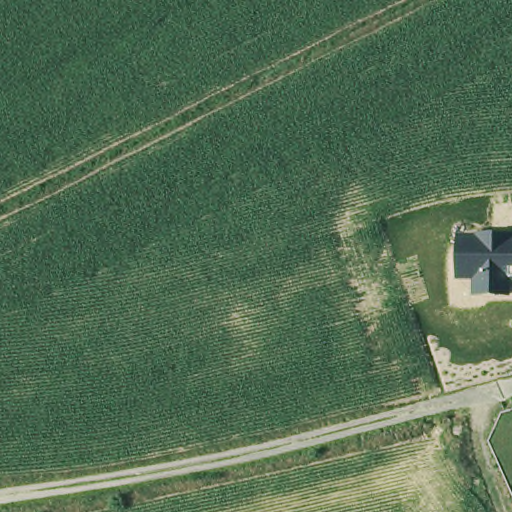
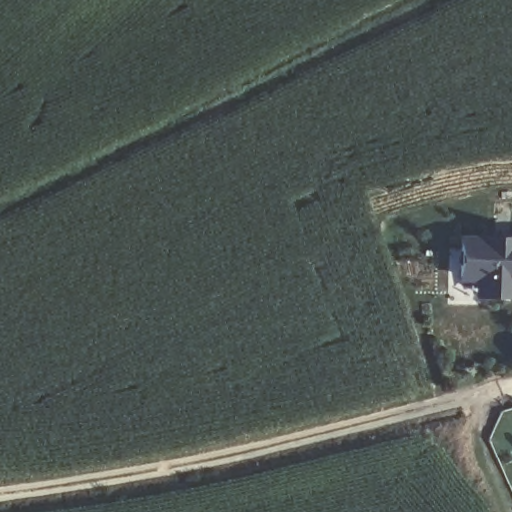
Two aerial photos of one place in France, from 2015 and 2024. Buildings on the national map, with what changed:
unchanged [(509,281),(510,297),(471,296),(471,280),(456,280),(457,233),(512,234),(512,281),(509,281)]

